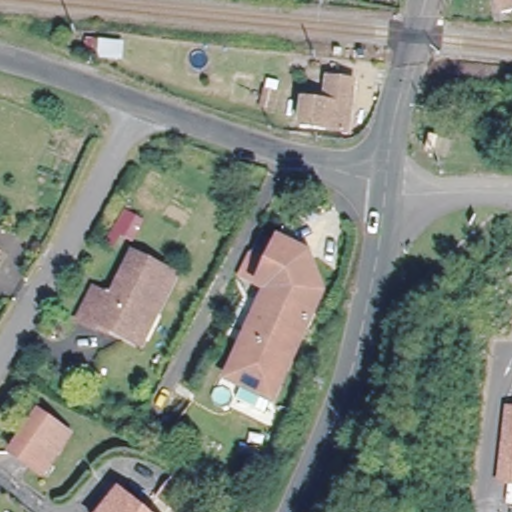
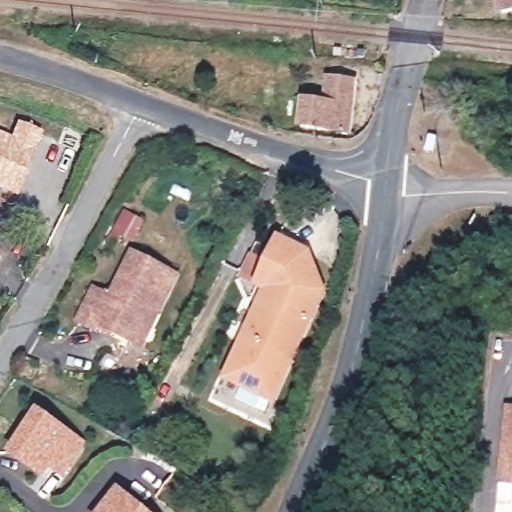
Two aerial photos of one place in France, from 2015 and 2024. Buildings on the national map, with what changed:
unchanged [(505,13),(502,0),(512,0),(512,11),(505,13)]
unchanged [(348,134),(302,128),(304,105),(326,107),(328,84),(354,87),(348,134)]
new [(17,120),(43,130),(17,196),(0,189),(0,132),(11,137),(17,120)]
unchanged [(322,292),(271,400),(226,378),(267,289),(258,285),(241,276),(253,252),(269,260),(279,239),(307,253),(322,292)]
unchanged [(137,347),(127,341),(98,326),(95,330),(79,322),(96,288),(112,297),(136,255),(170,274),(175,277),(137,347)]
unchanged [(502,482),(510,410),(512,410),(512,483),(502,482)]
unchanged [(37,415),(68,435),(42,473),(12,453),(37,415)]
unchanged [(104,512),(120,493),(144,512),(104,512)]

